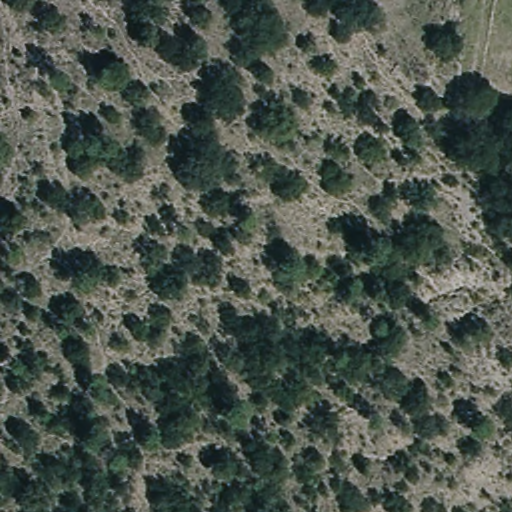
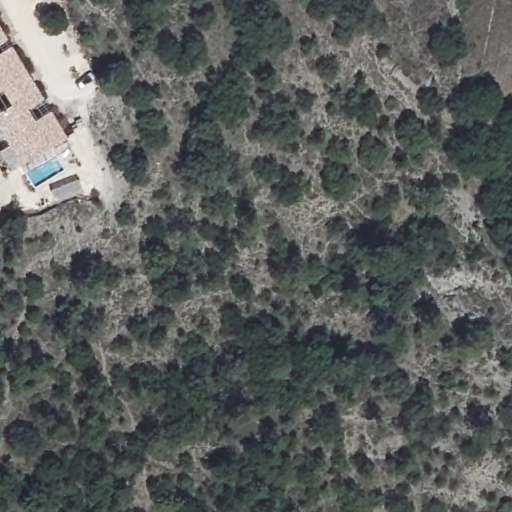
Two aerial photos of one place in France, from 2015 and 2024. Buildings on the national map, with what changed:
new [(0,52),(0,35),(7,47),(0,52)]
new [(20,148),(14,152),(0,129),(0,128),(0,111),(0,74),(17,64),(38,99),(47,115),(57,131),(62,139),(27,160),(22,152),(20,148)]

